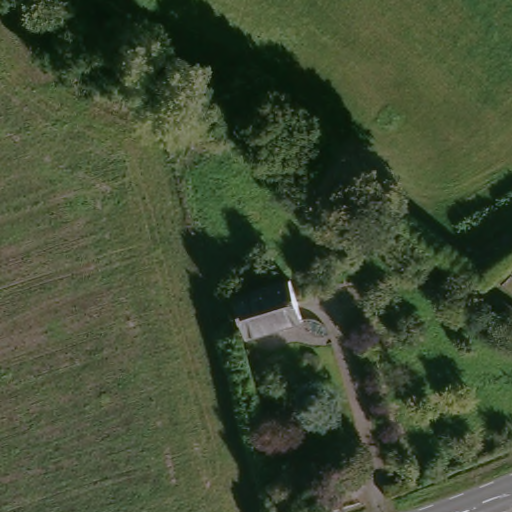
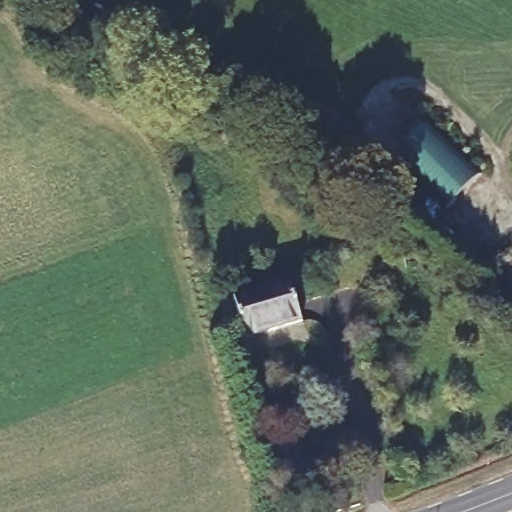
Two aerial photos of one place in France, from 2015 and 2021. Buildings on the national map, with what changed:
new [(395,153),(423,124),(477,176),(450,204),(395,153)]
unchanged [(299,328),(246,343),(233,301),(287,286),(299,328)]

